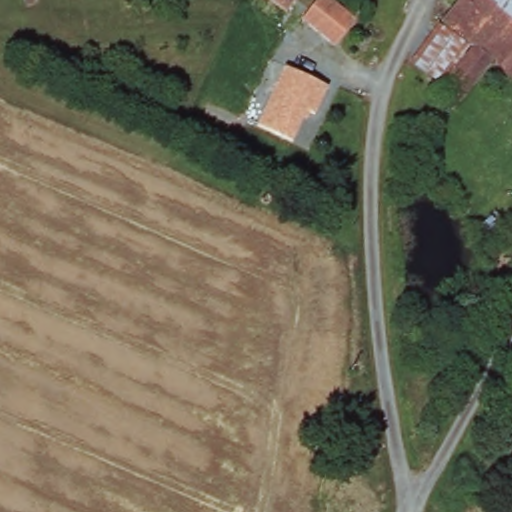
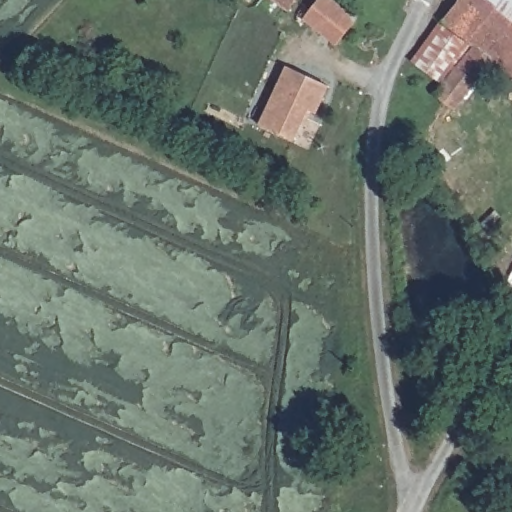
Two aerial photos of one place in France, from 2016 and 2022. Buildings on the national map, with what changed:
unchanged [(254,0),(302,0),(287,22),(254,0)]
unchanged [(491,0),(512,17),(512,87),(487,65),(448,111),(442,106),(429,95),(437,86),(468,49),(437,23),(456,0),(491,0)]
unchanged [(512,0),(512,17),(491,0),(512,0)]
unchanged [(314,2),(350,28),(341,39),(305,14),(314,2)]
unchanged [(437,23),(468,49),(437,86),(421,73),(408,62),(437,23)]
unchanged [(327,86),(315,118),(306,113),(292,143),(257,127),(285,69),(327,86)]

